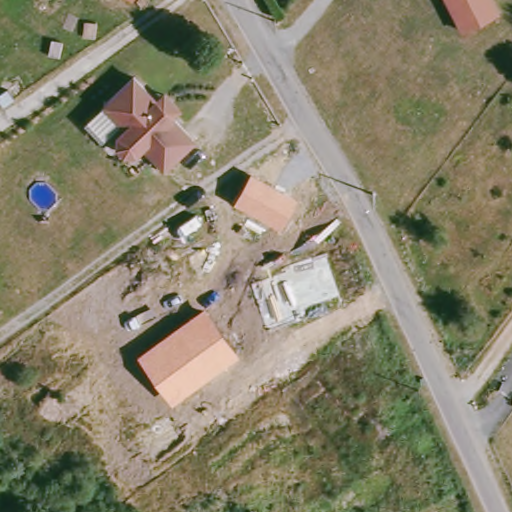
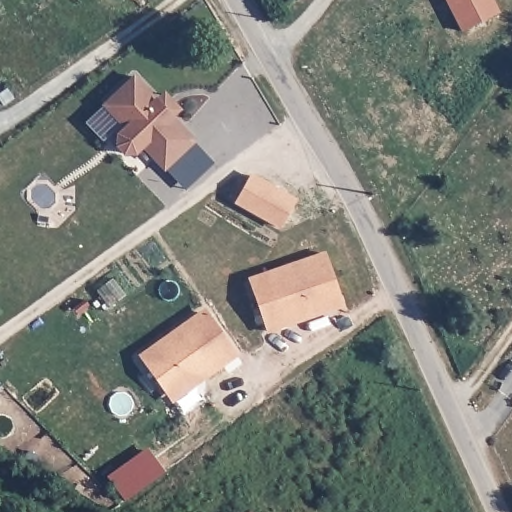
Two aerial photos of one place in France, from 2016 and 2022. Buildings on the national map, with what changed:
unchanged [(464,28),(450,0),(494,0),(498,6),(464,28)]
unchanged [(132,75),(140,81),(157,99),(165,91),(180,105),(172,113),(196,136),(167,166),(145,144),(138,151),(127,152),(121,146),(120,145),(120,141),(119,135),(123,130),(127,126),(125,125),(104,105),(132,75)]
new [(196,136),(217,158),(187,187),(167,166),(196,136)]
unchanged [(297,196),(281,227),(233,202),(252,171),(297,196)]
new [(248,278),(325,252),(344,307),(268,333),(248,278)]
unchanged [(203,307),(238,355),(173,403),(138,354),(203,307)]
unchanged [(257,504),(263,512),(246,512),(257,504)]

